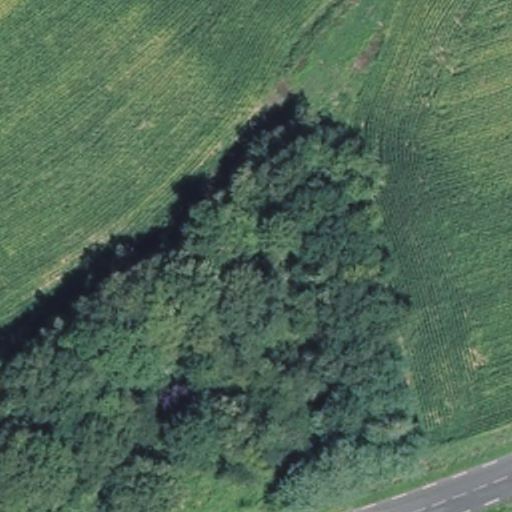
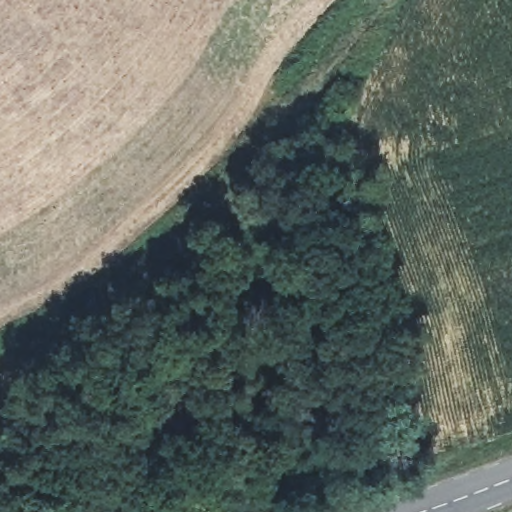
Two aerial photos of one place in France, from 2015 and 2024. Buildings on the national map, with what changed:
unchanged [(19,456),(0,468),(0,431),(19,456)]
unchanged [(6,487),(0,491),(0,479),(6,487)]

